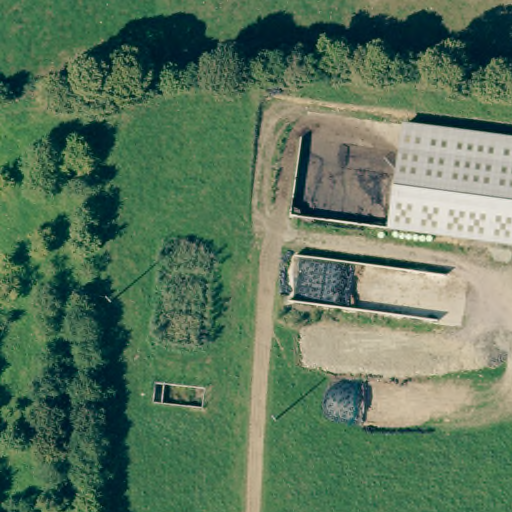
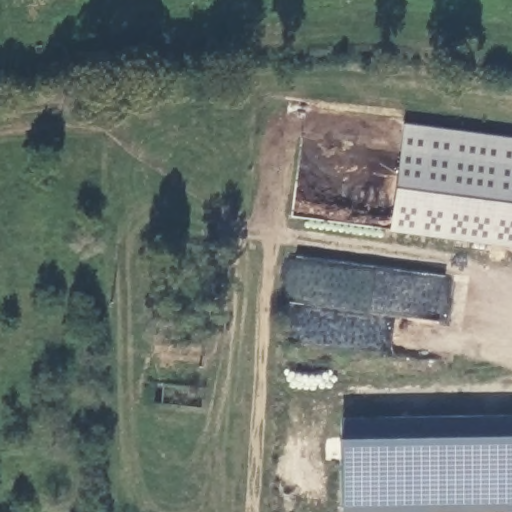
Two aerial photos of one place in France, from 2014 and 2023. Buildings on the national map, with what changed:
unchanged [(388,231),(403,124),(512,138),(512,248),(388,231)]
new [(340,512),(340,439),(339,422),(512,417),(512,512),(340,512)]

